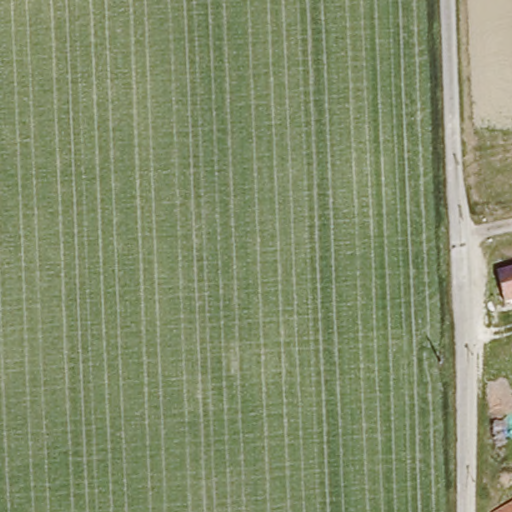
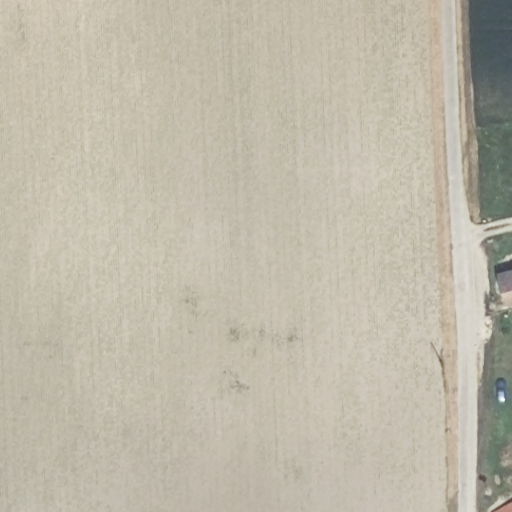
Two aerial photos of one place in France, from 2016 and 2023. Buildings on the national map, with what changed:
unchanged [(501,270),(512,267),(512,298),(507,299),(501,270)]

